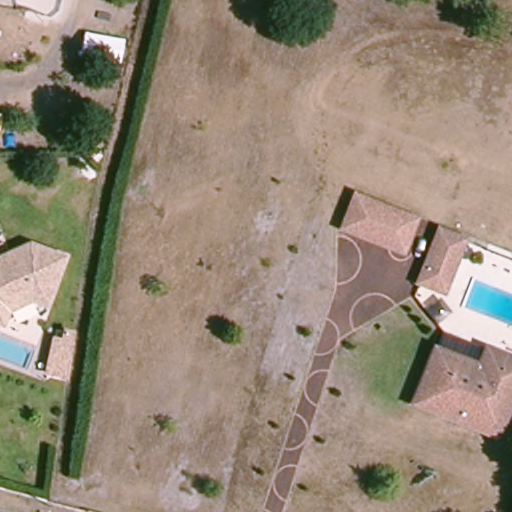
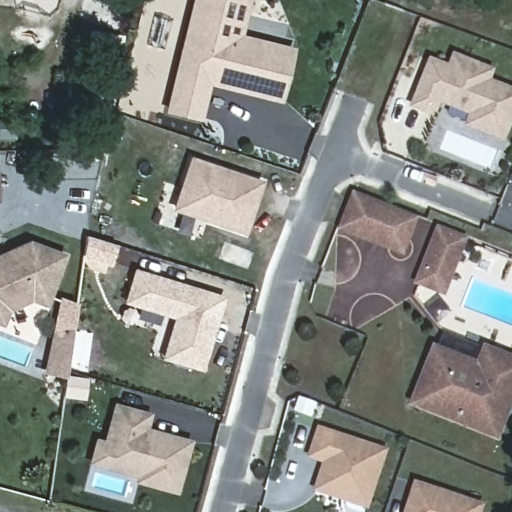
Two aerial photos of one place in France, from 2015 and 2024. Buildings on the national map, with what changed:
new [(209,84),(200,120),(170,113),(198,0),(250,0),(240,41),(293,54),(281,103),(239,92),(230,89),(209,84)]
new [(431,62),(449,69),(454,57),(490,72),(486,82),(512,92),(512,116),(503,138),(468,124),(473,113),(438,99),(432,113),(413,106),(431,62)]
new [(221,171),(233,176),(262,186),(246,234),(177,211),(193,162),(221,171)]
unchanged [(414,220),(403,250),(345,227),(356,198),(414,220)]
unchanged [(441,230),(466,239),(465,240),(446,290),(421,280),(441,230)]
unchanged [(64,257),(48,300),(46,305),(31,300),(8,311),(3,325),(0,324),(0,258),(31,244),(64,257)]
new [(137,274),(222,300),(202,370),(166,360),(178,319),(128,304),(137,274)]
unchanged [(420,390),(443,332),(512,359),(512,397),(498,435),(459,419),(415,402),(420,390)]
new [(51,345),(70,348),(67,367),(66,378),(46,375),(48,365),(51,345)]
new [(192,440),(177,494),(133,482),(135,478),(87,464),(95,437),(103,440),(114,403),(152,413),(147,428),(192,440)]
new [(313,491),(321,463),(306,457),(317,426),(387,450),(368,509),(313,491)]
new [(484,503),(482,512),(403,512),(413,480),(484,503)]

